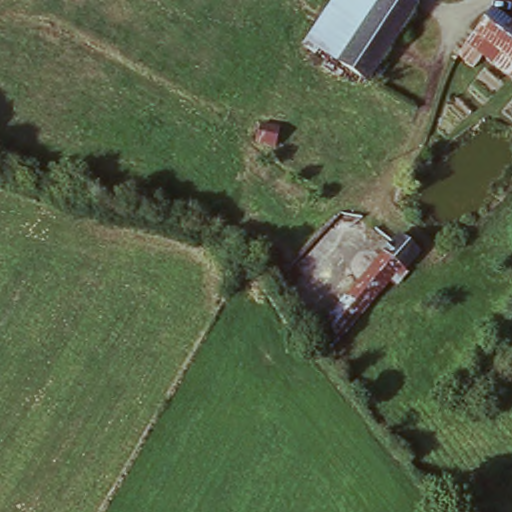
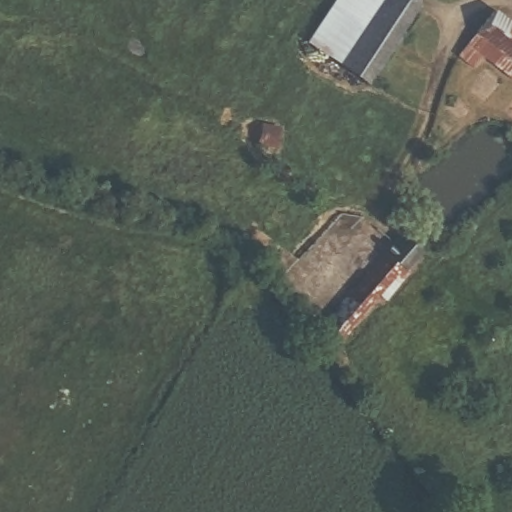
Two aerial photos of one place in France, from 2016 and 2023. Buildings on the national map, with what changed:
unchanged [(306,39),(331,0),(419,0),(421,2),(368,79),(306,39)]
unchanged [(512,20),(512,77),(478,52),(472,63),(456,49),(491,3),(512,20)]
unchanged [(312,318),(390,226),(424,253),(408,271),(400,263),(335,338),(312,318)]

